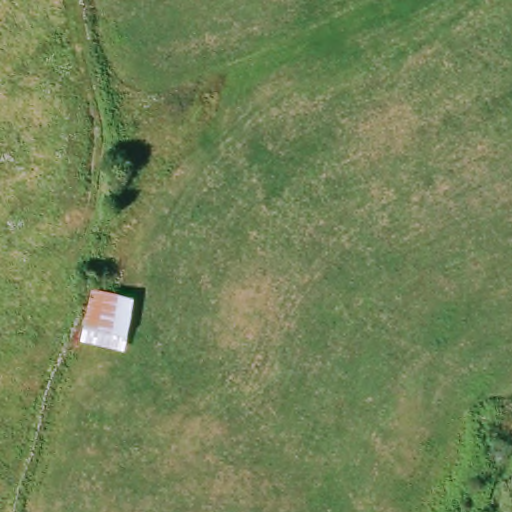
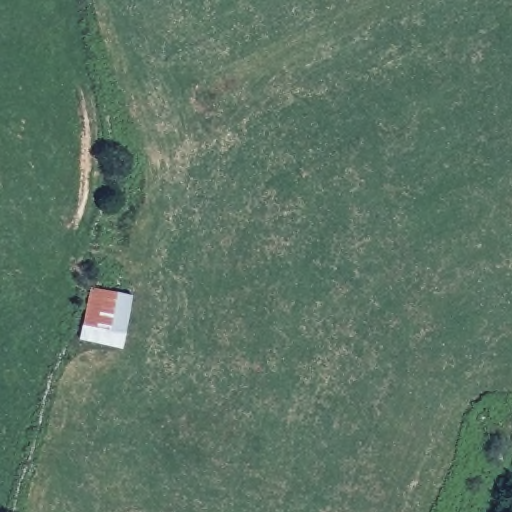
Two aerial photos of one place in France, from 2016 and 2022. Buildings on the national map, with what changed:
unchanged [(78,341),(82,327),(79,324),(84,287),(120,292),(112,336),(105,334),(103,346),(78,341)]

